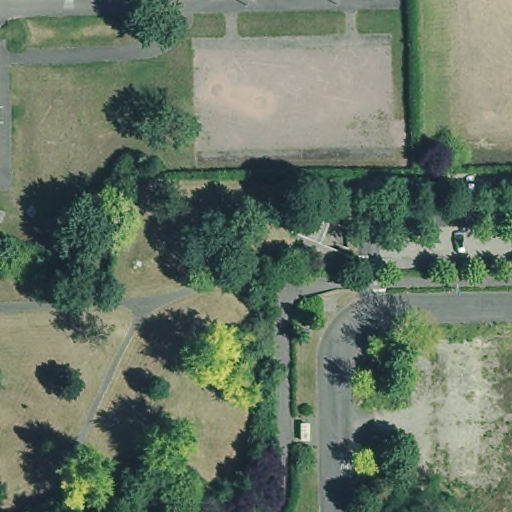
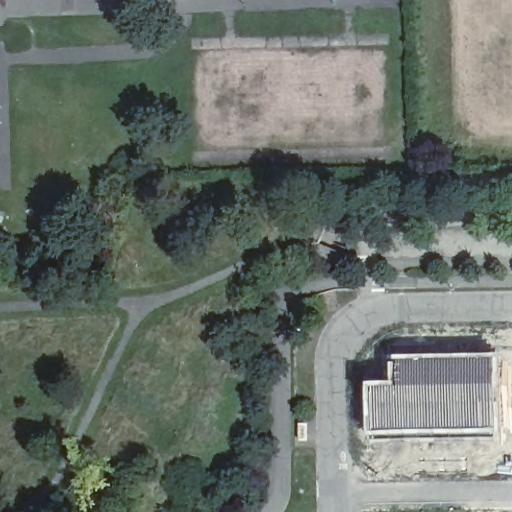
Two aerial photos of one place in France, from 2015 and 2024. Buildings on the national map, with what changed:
unchanged [(284,231),(287,224),(284,221),(291,207),(322,224),(314,243),(284,231)]
new [(389,379),(389,354),(498,350),(499,430),(366,433),(365,380),(389,379)]

